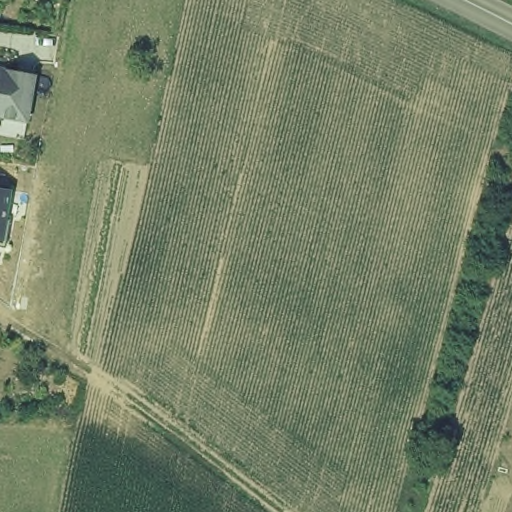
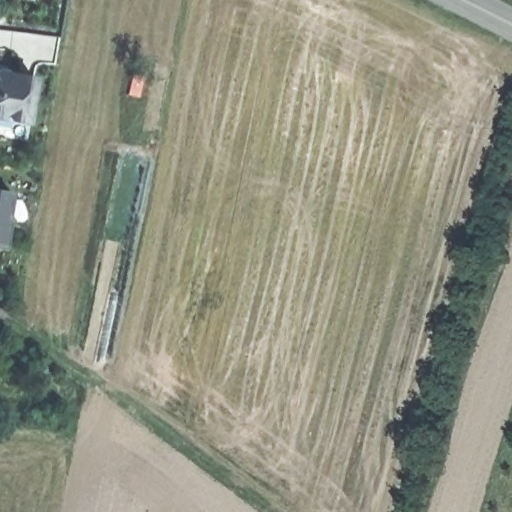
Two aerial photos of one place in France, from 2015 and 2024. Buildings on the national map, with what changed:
unchanged [(0,78),(0,75),(29,80),(21,125),(0,121),(0,78)]
unchanged [(0,189),(13,191),(8,216),(11,216),(5,247),(0,246),(0,189)]

